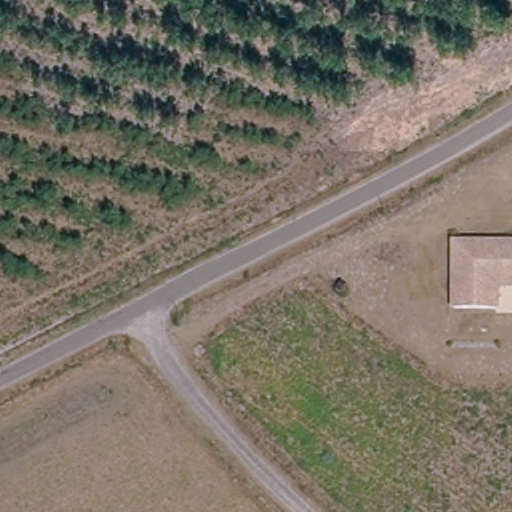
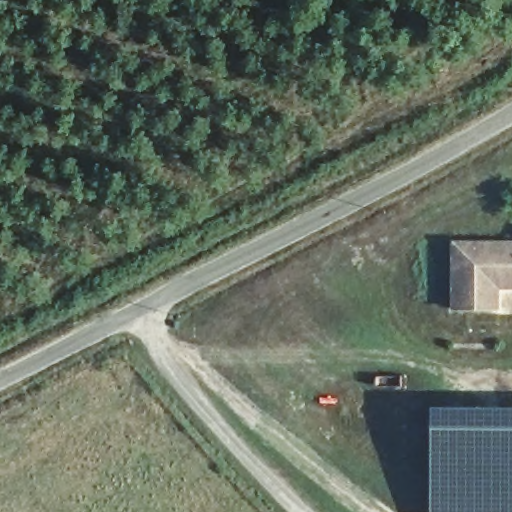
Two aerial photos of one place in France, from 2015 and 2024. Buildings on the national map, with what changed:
unchanged [(505,283),(504,303),(460,304),(459,244),(512,242),(512,283),(505,283)]
new [(430,408),(512,410),(512,512),(428,512),(430,408)]

